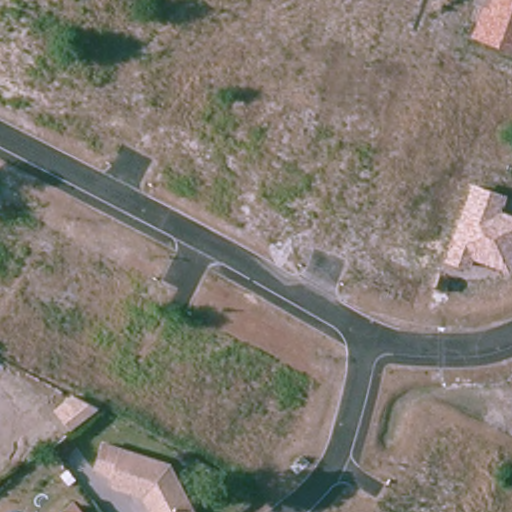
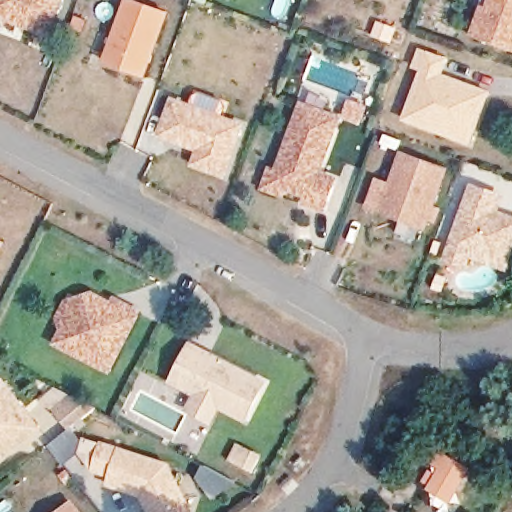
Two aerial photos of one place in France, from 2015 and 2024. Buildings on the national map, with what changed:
new [(53,34),(0,14),(0,0),(65,0),(53,34)]
new [(127,0),(137,0),(171,12),(147,79),(105,62),(127,0)]
unchanged [(480,3),(487,4),(489,0),(512,0),(512,51),(470,37),(480,3)]
new [(472,146),(403,123),(421,71),(413,68),(420,49),(450,59),(445,74),(490,93),(472,146)]
new [(193,166),(197,150),(159,137),(172,98),(245,124),(226,178),(193,166)]
new [(282,171),(307,103),(344,117),(323,172),(340,178),(330,209),(311,202),(313,195),(290,187),(287,193),(270,187),(276,169),(282,171)]
new [(407,153),(450,169),(430,226),(386,210),(407,153)]
unchanged [(507,195),(502,211),(512,214),(512,266),(510,274),(473,263),(469,272),(443,261),(471,182),(507,195)]
new [(0,256),(0,241),(6,244),(0,256)]
new [(55,346),(61,329),(56,318),(65,300),(94,292),(112,302),(115,297),(142,312),(111,373),(55,346)]
new [(191,341),(270,380),(249,424),(221,409),(214,426),(186,412),(193,395),(170,383),(191,341)]
demolished [(4,375),(31,411),(35,407),(46,422),(10,449),(6,444),(0,449),(0,377),(4,375)]
new [(42,431),(0,462),(0,381),(5,378),(42,431)]
unchanged [(52,411),(72,394),(98,408),(70,431),(52,411)]
unchanged [(80,444),(68,453),(60,443),(72,434),(80,444)]
unchanged [(147,494),(134,489),(115,483),(117,475),(100,469),(108,442),(173,463),(193,501),(199,512),(157,512),(150,497),(147,494)]
new [(434,475),(440,479),(444,473),(437,469),(445,455),(473,472),(454,504),(433,492),(434,490),(427,486),(434,475)]
unchanged [(84,512),(64,512),(76,502),(84,512)]

